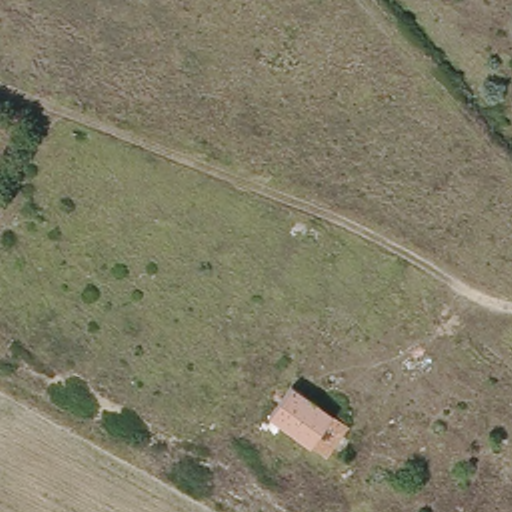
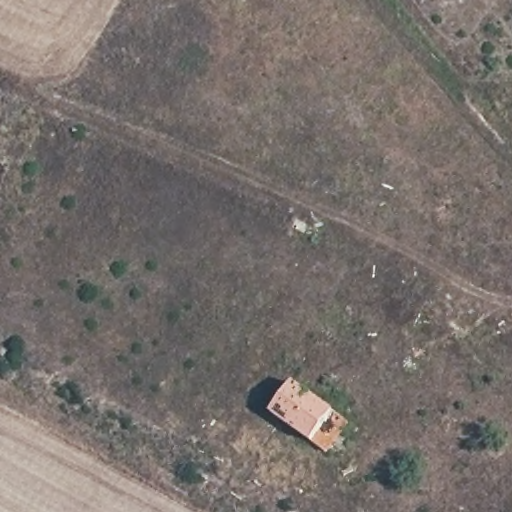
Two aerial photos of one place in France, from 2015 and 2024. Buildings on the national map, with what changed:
unchanged [(327,454),(312,443),(270,413),(292,383),(333,412),(348,423),(327,454)]

